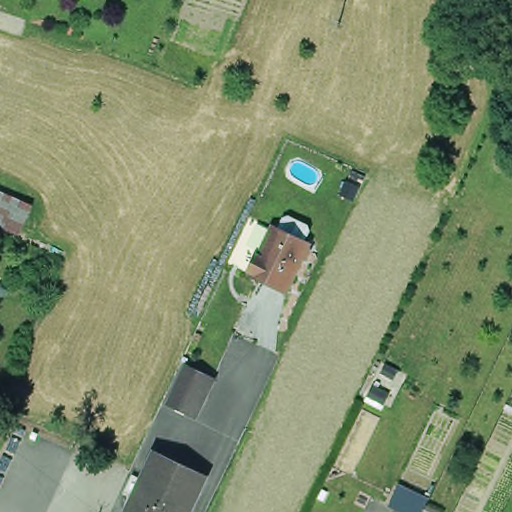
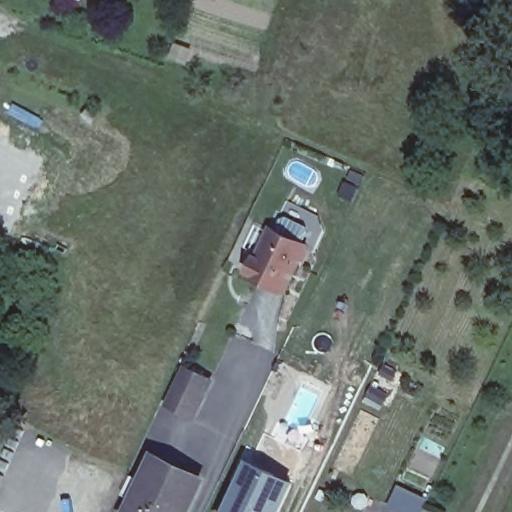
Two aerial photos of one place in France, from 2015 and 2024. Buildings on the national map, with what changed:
unchanged [(15,234),(0,228),(0,193),(25,203),(15,234)]
unchanged [(279,290),(247,275),(247,273),(245,266),(248,259),(255,256),(270,227),(302,243),(279,290)]
unchanged [(169,406),(187,369),(208,380),(200,398),(205,400),(195,419),(169,406)]
demolished [(0,459),(3,451),(18,458),(5,489),(0,487),(0,459)]
new [(242,454),(295,479),(280,512),(217,512),(242,454)]
unchanged [(141,501),(130,496),(138,480),(149,485),(160,461),(207,484),(194,512),(136,512),(141,501)]
unchanged [(390,505),(399,484),(429,499),(423,512),(403,512),(390,505)]

